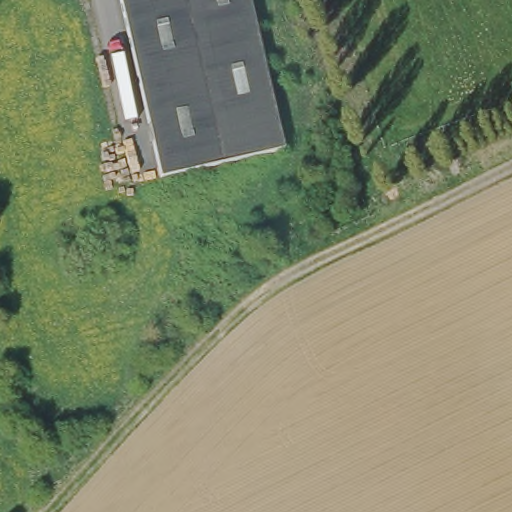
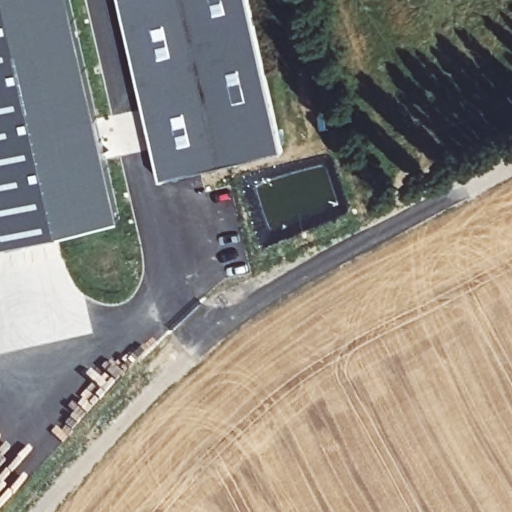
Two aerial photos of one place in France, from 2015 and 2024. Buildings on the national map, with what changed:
new [(0,246),(0,0),(71,0),(121,219),(0,246)]
unchanged [(160,176),(119,0),(247,0),(281,154),(160,176)]

